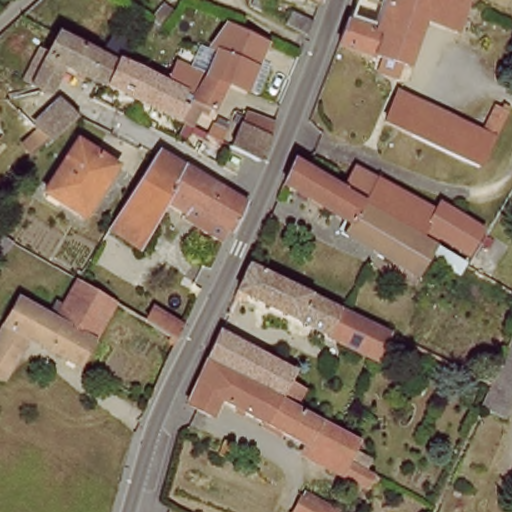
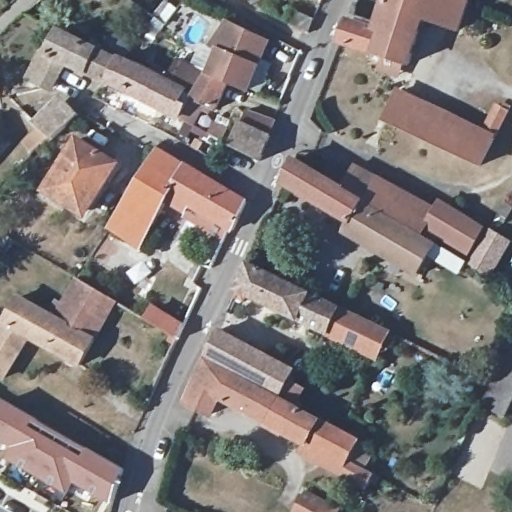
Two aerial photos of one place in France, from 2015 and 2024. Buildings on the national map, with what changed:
unchanged [(264,11),(255,7),(252,5),(255,0),(269,0),(264,11)]
unchanged [(311,1),(308,0),(312,0),(311,1)]
unchanged [(350,20),(378,29),(380,26),(380,23),(389,0),(469,0),(458,30),(422,20),(409,63),(340,44),(350,20)]
unchanged [(352,13),(357,0),(389,0),(380,23),(352,13)]
unchanged [(295,10),(315,19),(310,32),(288,22),(295,10)]
unchanged [(186,107),(176,122),(155,111),(107,90),(116,67),(117,64),(165,87),(173,70),(202,86),(205,82),(216,56),(210,53),(225,30),(265,47),(242,97),(224,89),(210,115),(188,103),(186,107)]
unchanged [(117,64),(116,67),(107,90),(61,70),(47,95),(41,91),(32,87),(51,51),(59,36),(117,64)]
unchanged [(394,94),(478,132),(494,105),(505,110),(475,165),(382,122),(394,94)]
unchanged [(36,147),(26,136),(40,121),(63,100),(77,111),(54,132),(36,147)]
unchanged [(248,112),(258,115),(275,122),(262,161),(235,146),(231,144),(223,140),(212,134),(217,125),(227,130),(238,136),(248,112)]
unchanged [(77,142),(113,165),(79,215),(42,193),(77,142)]
unchanged [(185,209),(186,207),(168,197),(153,222),(154,250),(112,223),(162,147),(170,151),(246,196),(235,223),(232,222),(227,233),(185,209)]
unchanged [(417,253),(406,272),(336,229),(341,221),(276,182),(286,162),(333,190),(408,233),(410,234),(423,242),(456,261),(450,272),(417,253)]
unchanged [(333,190),(346,168),(422,209),(430,201),(471,227),(457,250),(412,225),(408,233),(333,190)]
unchanged [(6,258),(0,254),(0,243),(6,234),(18,242),(6,258)]
unchanged [(250,263),(337,306),(342,308),(330,333),(239,289),(250,263)]
unchanged [(16,298),(53,319),(76,280),(113,303),(76,365),(25,337),(0,378),(0,326),(10,309),(16,298)]
unchanged [(391,332),(380,357),(330,333),(342,308),(391,332)]
unchanged [(178,340),(148,322),(156,309),(185,327),(178,340)]
unchanged [(220,340),(295,380),(290,388),(300,394),(301,405),(295,415),(277,405),(208,368),(220,340)]
unchanged [(512,340),(512,410),(508,419),(483,409),(493,386),(512,340)]
unchanged [(377,495),(371,492),(368,496),(343,482),(346,479),(305,457),(306,454),(220,407),(210,424),(188,413),(208,368),(277,405),(295,415),(300,417),(360,450),(355,460),(372,469),(367,479),(375,484),(381,487),(377,495)]
new [(112,506),(74,485),(69,495),(5,460),(11,449),(0,442),(0,409),(3,402),(125,470),(112,506)]
unchanged [(225,442),(234,447),(228,458),(220,452),(225,442)]
unchanged [(294,512),(302,496),(330,512),(294,512)]

